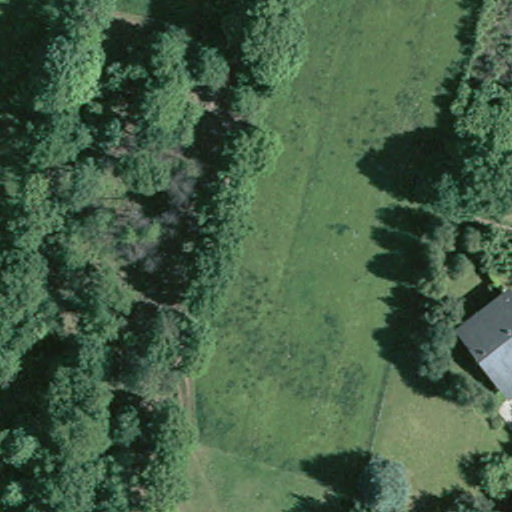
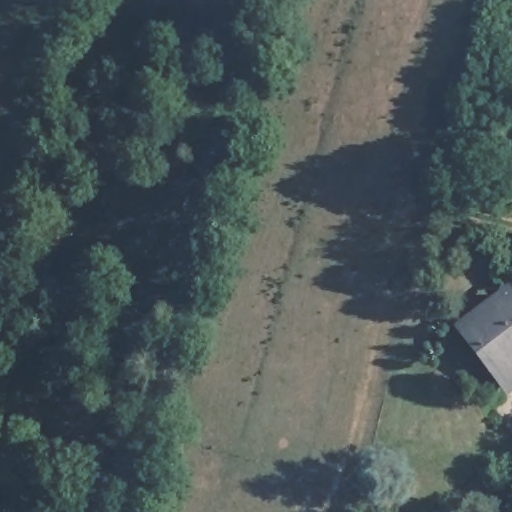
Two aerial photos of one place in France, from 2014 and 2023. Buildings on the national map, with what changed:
unchanged [(464,328),(507,295),(512,301),(512,382),(507,386),(464,328)]

